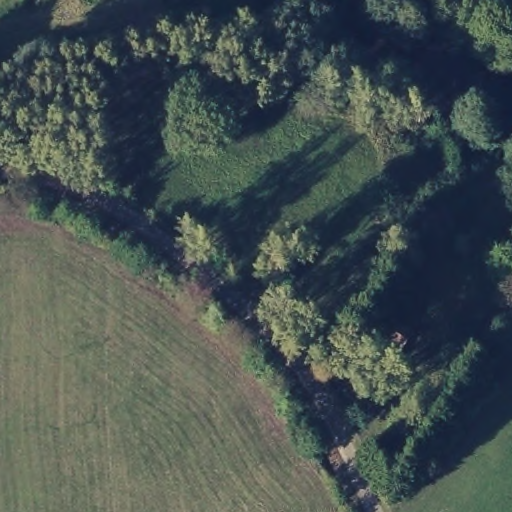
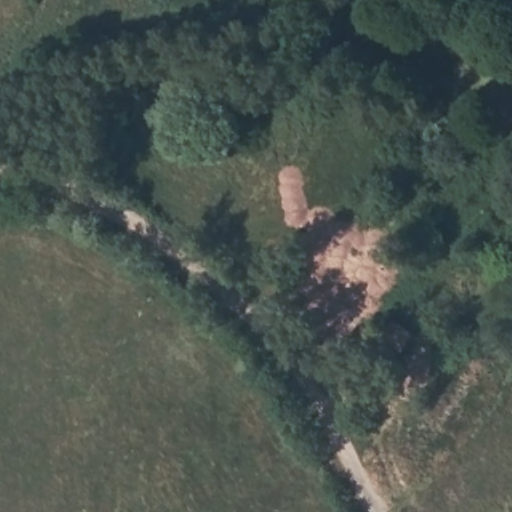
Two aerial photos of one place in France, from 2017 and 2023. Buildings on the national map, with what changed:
unchanged [(381,340),(394,323),(411,335),(399,351),(381,340)]
unchanged [(397,353),(386,367),(376,360),(386,345),(397,353)]

